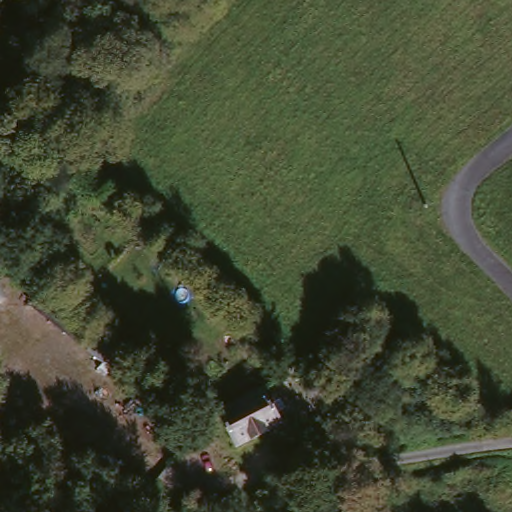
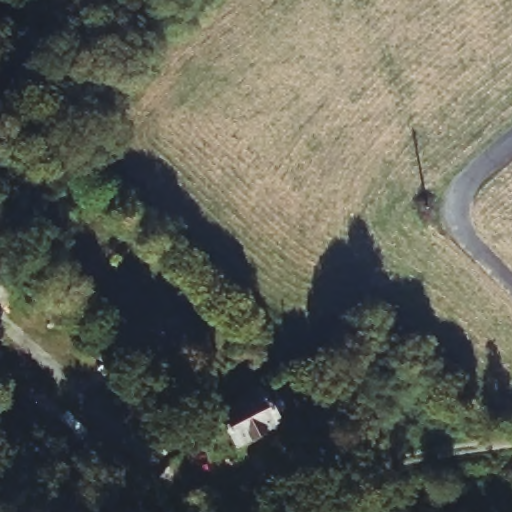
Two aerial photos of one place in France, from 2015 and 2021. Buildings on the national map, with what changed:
unchanged [(200,397),(191,406),(172,388),(181,378),(200,397)]
unchanged [(278,424),(235,446),(217,411),(260,389),(268,404),(276,399),(281,407),(271,412),(278,424)]

